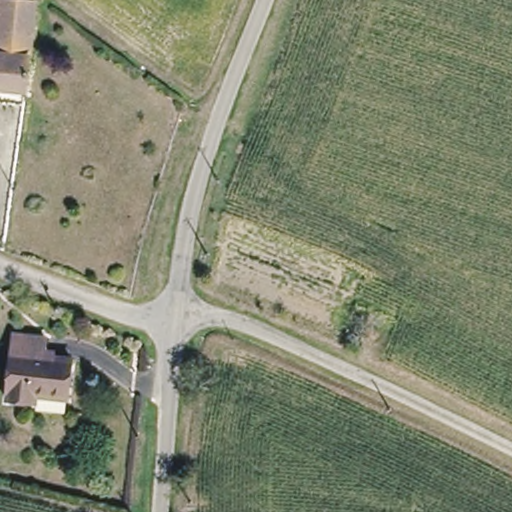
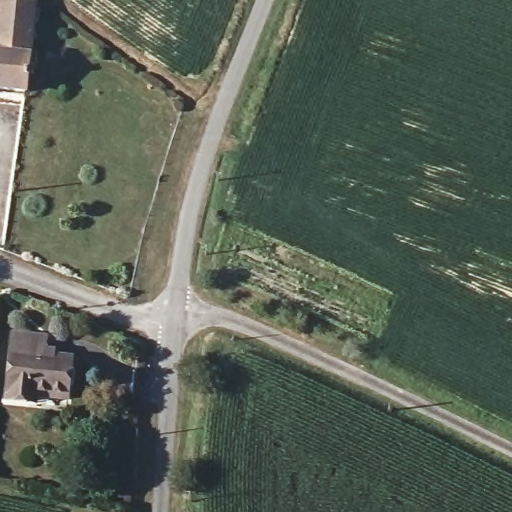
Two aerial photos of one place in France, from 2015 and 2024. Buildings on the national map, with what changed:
unchanged [(3,0),(38,0),(27,93),(0,90),(0,23),(3,0)]
unchanged [(15,326),(49,332),(47,351),(70,354),(67,391),(29,388),(27,399),(7,396),(15,326)]

